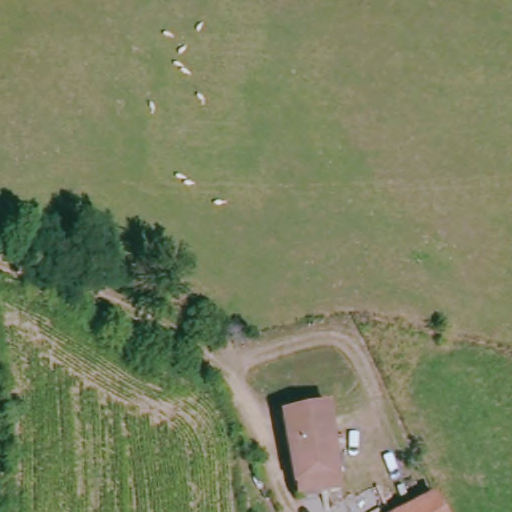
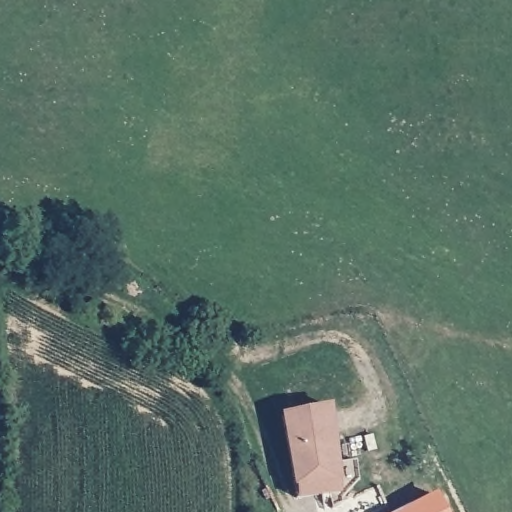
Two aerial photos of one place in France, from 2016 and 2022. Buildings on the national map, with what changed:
unchanged [(296,495),(295,487),(283,417),(331,410),(343,492),(329,494),(302,497),(296,495)]
unchanged [(441,512),(387,512),(432,495),(441,512)]

